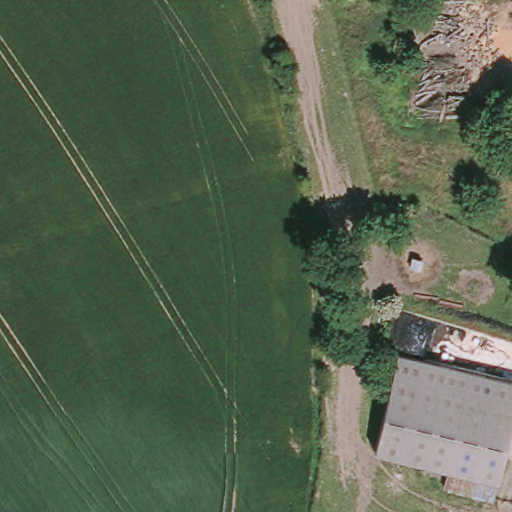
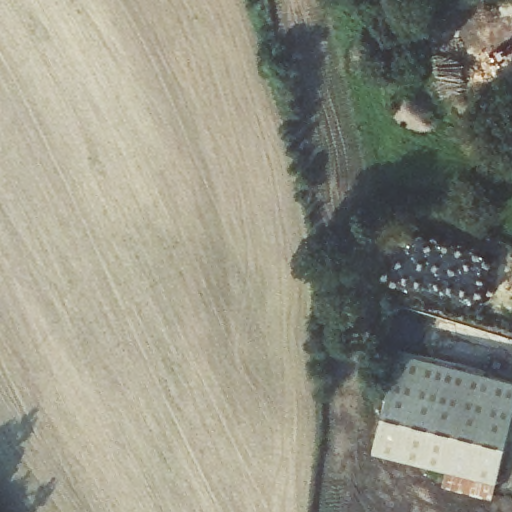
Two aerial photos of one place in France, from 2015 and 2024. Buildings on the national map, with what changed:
unchanged [(512,378),(512,417),(498,480),(375,453),(396,352),(512,378)]

